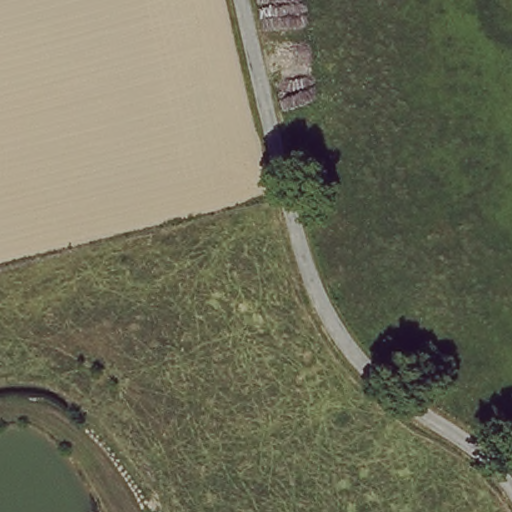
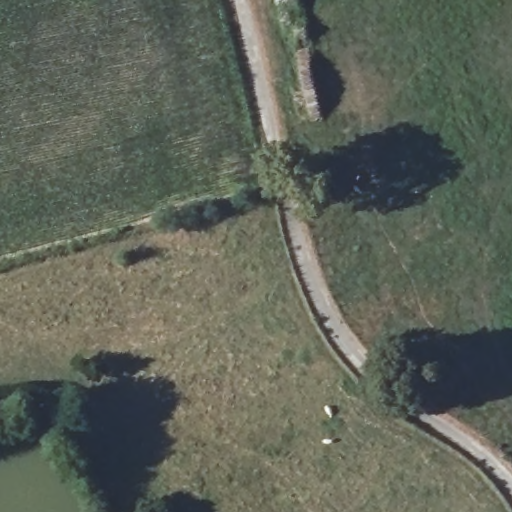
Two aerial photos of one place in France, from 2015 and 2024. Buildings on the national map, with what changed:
[]

